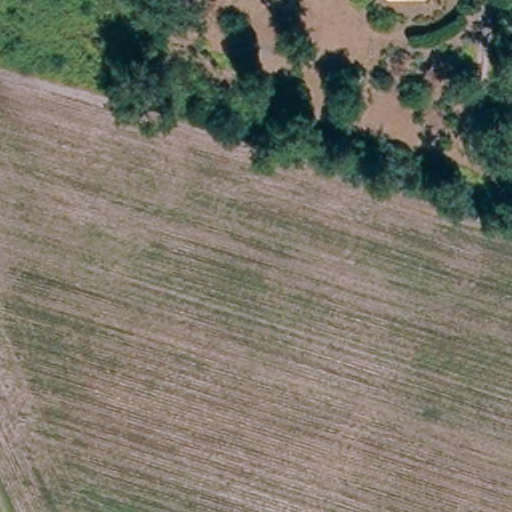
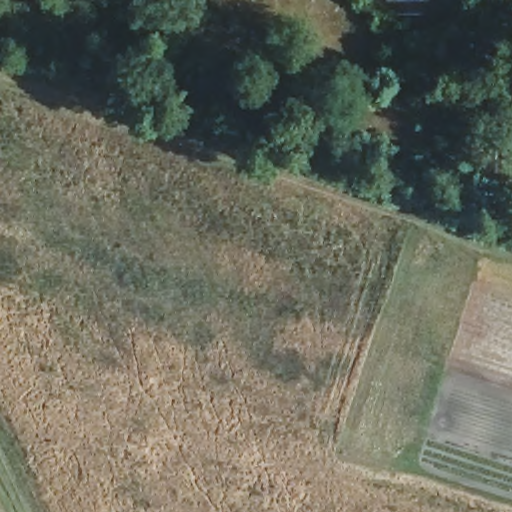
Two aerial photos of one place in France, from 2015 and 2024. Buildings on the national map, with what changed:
[]

